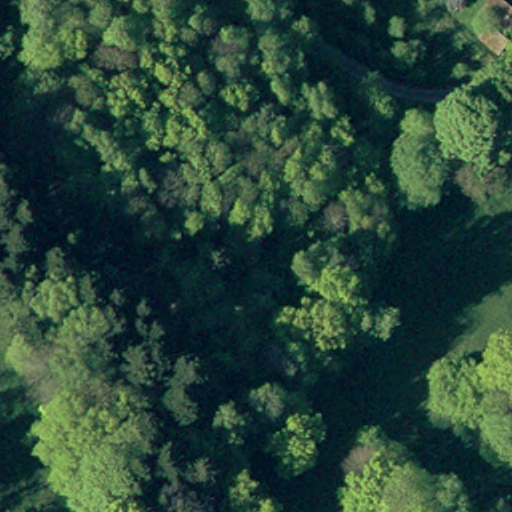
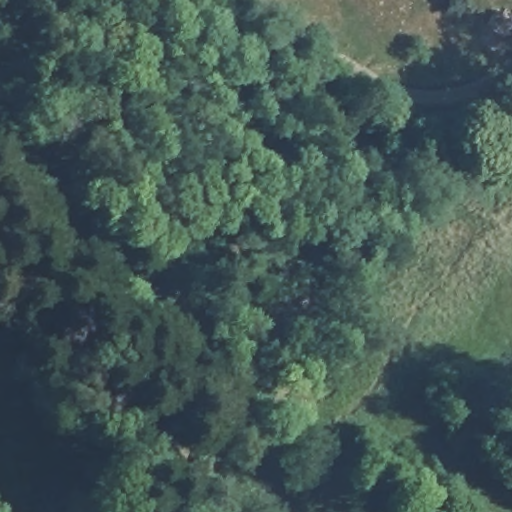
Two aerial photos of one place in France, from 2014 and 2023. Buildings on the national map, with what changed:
unchanged [(480,38),(494,18),(512,31),(512,50),(506,58),(480,38)]

